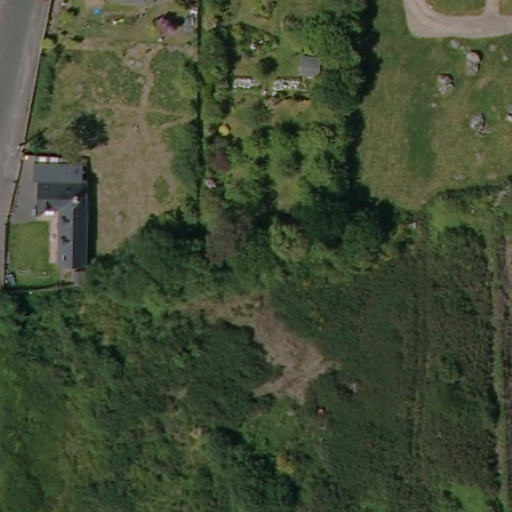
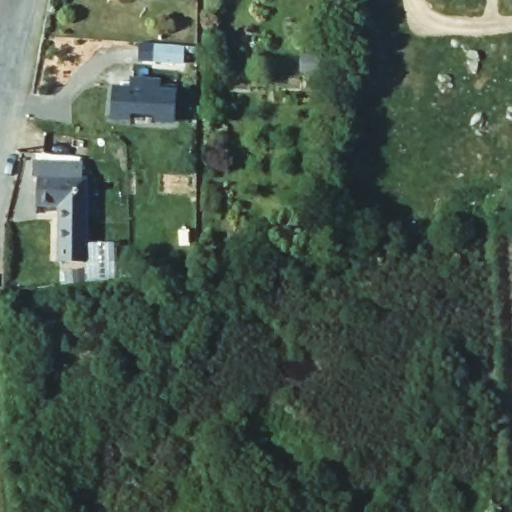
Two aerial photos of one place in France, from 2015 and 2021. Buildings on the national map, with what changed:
new [(119,86),(119,80),(129,81),(130,76),(164,79),(163,89),(175,90),(172,120),(155,119),(155,112),(129,110),(128,117),(111,117),(112,85),(119,86)]
unchanged [(81,161),(85,201),(91,257),(62,261),(56,206),(49,207),(46,181),(37,182),(36,167),(81,161)]

